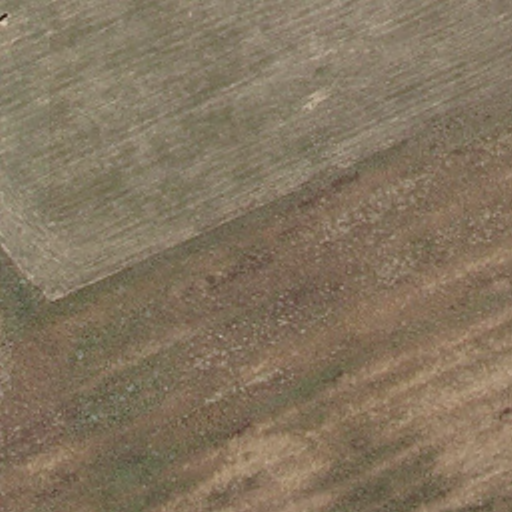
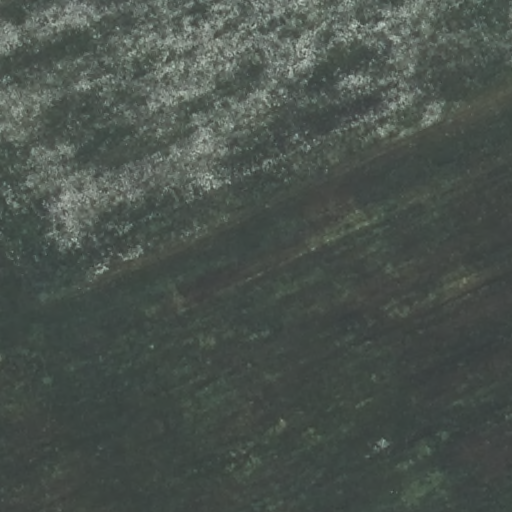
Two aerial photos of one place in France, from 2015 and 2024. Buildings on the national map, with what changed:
[]

